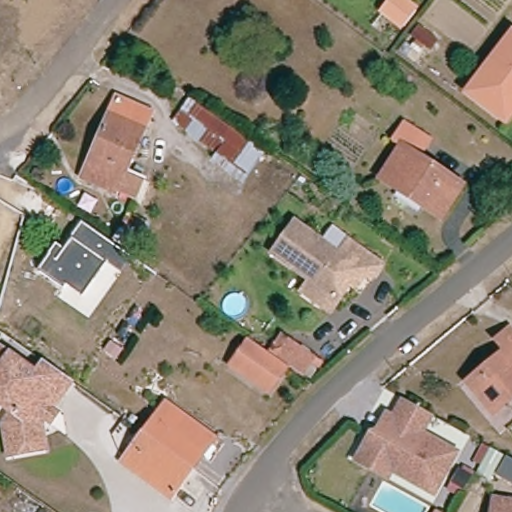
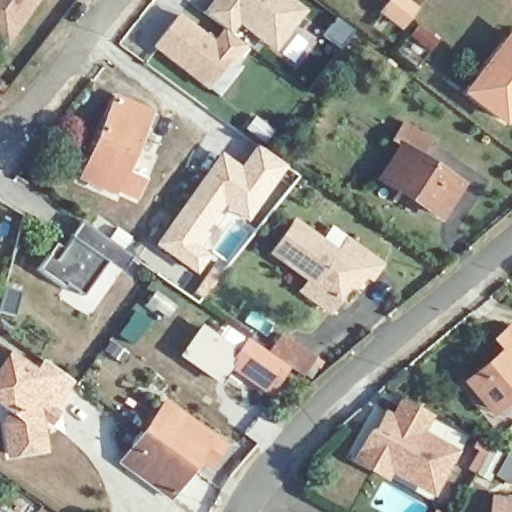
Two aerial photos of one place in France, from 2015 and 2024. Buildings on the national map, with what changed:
unchanged [(6,44),(0,39),(0,0),(36,0),(6,44)]
new [(276,50),(239,25),(232,32),(204,10),(212,0),(294,0),(307,10),(276,50)]
unchanged [(394,0),(400,0),(416,12),(409,21),(404,29),(384,13),(394,0)]
new [(235,64),(230,61),(207,88),(152,47),(179,13),(214,40),(223,29),(247,48),(235,64)]
unchanged [(438,43),(430,54),(409,37),(418,27),(438,43)]
unchanged [(467,94),(512,36),(512,113),(504,123),(467,94)]
unchanged [(126,180),(143,187),(135,205),(117,197),(116,200),(80,185),(116,104),(152,120),(126,180)]
unchanged [(460,198),(440,229),(381,190),(401,159),(392,153),(403,136),(429,153),(418,170),(460,198)]
new [(241,166),(257,145),(287,167),(247,223),(224,207),(197,245),(211,255),(196,275),(155,245),(222,152),(241,166)]
unchanged [(308,285),(312,279),(274,251),(298,219),(342,250),(351,238),(386,263),(376,277),(371,274),(360,288),(354,283),(342,300),(338,306),(308,285)]
unchanged [(120,275),(105,265),(82,298),(65,286),(62,290),(36,272),(48,256),(55,245),(62,251),(70,240),(69,239),(80,223),(117,249),(131,258),(120,275)]
unchanged [(512,402),(488,421),(461,388),(500,355),(493,346),(506,336),(512,343),(512,395),(508,398),(512,402)]
unchanged [(237,341),(282,373),(264,398),(219,367),(237,341)]
unchanged [(316,366),(303,383),(275,362),(288,345),(316,366)]
unchanged [(30,431),(33,456),(0,461),(0,423),(2,420),(0,418),(0,362),(26,380),(34,370),(37,372),(59,388),(30,431)]
unchanged [(355,464),(362,451),(370,437),(378,437),(387,421),(393,425),(404,405),(430,419),(429,419),(420,436),(456,456),(433,497),(391,473),(387,481),(355,464)]
unchanged [(192,475),(142,439),(164,409),(214,445),(192,475)]
unchanged [(170,505),(120,469),(142,439),(192,475),(170,505)]
new [(468,469),(478,450),(472,447),(477,440),(512,460),(512,485),(493,475),(489,481),(468,469)]
unchanged [(512,512),(482,512),(484,500),(512,504),(512,512)]

